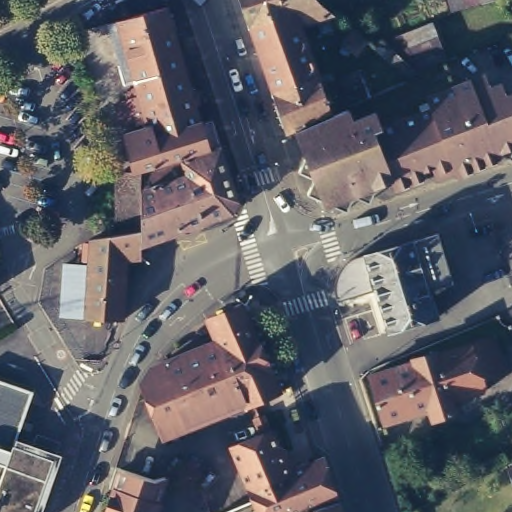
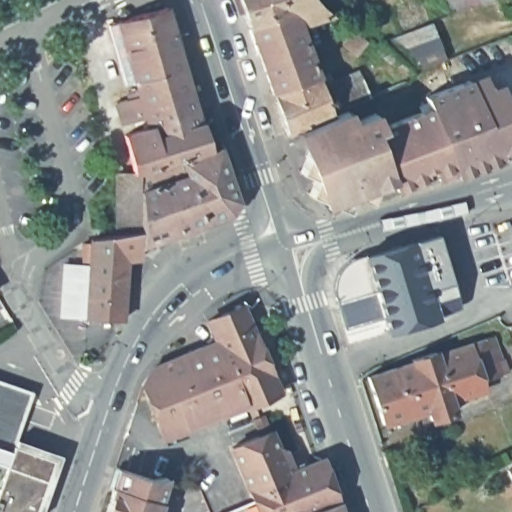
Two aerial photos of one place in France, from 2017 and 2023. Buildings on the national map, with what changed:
unchanged [(155,124),(152,113),(128,120),(122,99),(135,95),(114,20),(129,15),(125,13),(125,9),(126,5),(130,5),(134,6),(135,10),(133,14),(155,7),(150,0),(167,0),(170,4),(172,2),(205,119),(217,116),(225,142),(225,143),(213,146),(188,155),(141,169),(131,130),(155,124)]
unchanged [(334,9),(303,20),(325,81),(361,64),(374,94),(352,104),(300,126),(291,130),(247,0),(326,0),(334,9)]
unchanged [(455,5),(454,0),(471,0),(455,5)]
unchanged [(379,45),(386,36),(435,17),(448,54),(420,66),(407,54),(407,55),(401,62),(379,45)]
unchanged [(351,30),(363,42),(353,52),(341,40),(351,30)]
unchanged [(322,198),(317,191),(311,189),(316,177),(318,172),(301,166),(310,150),(317,134),(300,126),(352,104),(357,116),(378,109),(385,122),(433,103),(430,91),(473,75),(512,92),(512,152),(501,147),(504,154),(461,170),(457,165),(440,174),(438,169),(400,185),(395,175),(380,180),(372,197),(357,190),(355,193),(350,206),(343,202),(327,204),(322,198)]
unchanged [(195,171),(188,155),(213,146),(214,147),(225,144),(243,196),(236,210),(147,240),(146,226),(146,188),(195,171)]
unchanged [(146,188),(146,226),(123,230),(125,170),(141,169),(146,188)]
unchanged [(146,226),(147,240),(147,252),(131,254),(127,316),(121,316),(92,315),(95,255),(87,255),(88,239),(96,239),(96,234),(123,230),(146,226)]
unchanged [(395,327),(381,284),(361,290),(351,257),(371,251),(371,250),(419,235),(431,273),(440,271),(442,280),(434,282),(443,312),(395,327)]
unchanged [(155,362),(168,357),(217,336),(209,315),(242,300),(280,387),(164,433),(143,380),(155,362)]
unchanged [(437,350),(471,338),(494,331),(495,333),(494,334),(501,355),(505,353),(512,376),(512,377),(487,385),(452,396),(456,407),(432,415),(428,405),(384,419),(368,372),(413,357),(412,355),(436,347),(437,350)]
unchanged [(35,387),(16,440),(55,455),(35,512),(0,512),(0,375),(35,387)]
unchanged [(260,431),(253,415),(265,410),(271,426),(278,443),(285,446),(290,457),(283,470),(322,455),(324,453),(338,496),(290,512),(216,512),(255,495),(232,443),(260,431)]
unchanged [(150,471),(161,467),(153,492),(155,493),(150,508),(153,510),(152,512),(98,512),(116,459),(150,471)]
unchanged [(512,465),(512,472),(510,465),(512,465)]
unchanged [(343,512),(290,512),(338,496),(343,512)]

